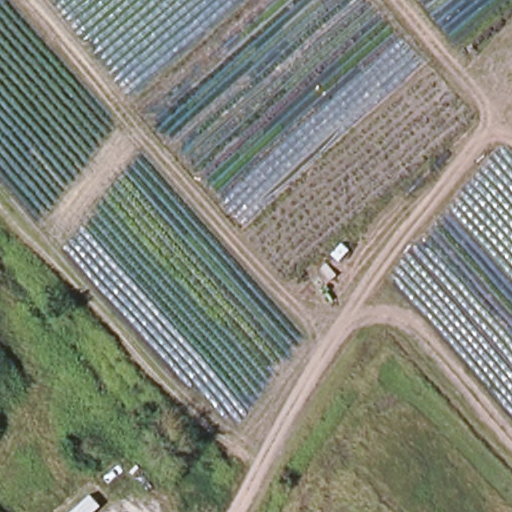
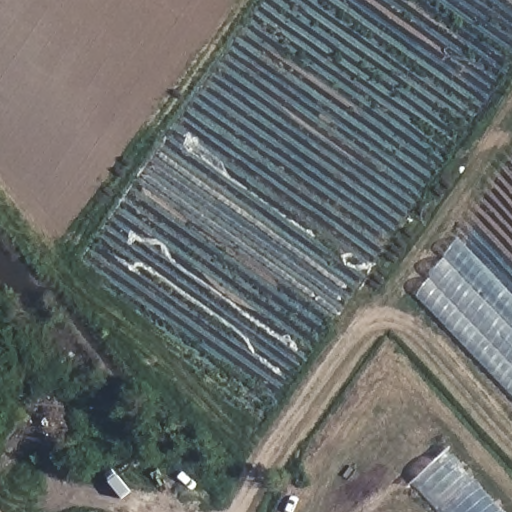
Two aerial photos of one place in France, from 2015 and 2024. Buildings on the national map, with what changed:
new [(459,236),(512,292),(512,395),(417,296),(459,236)]
new [(506,512),(437,512),(411,483),(449,449),(506,512)]

